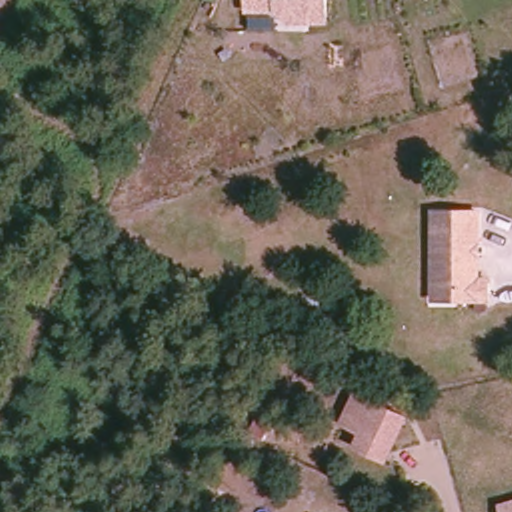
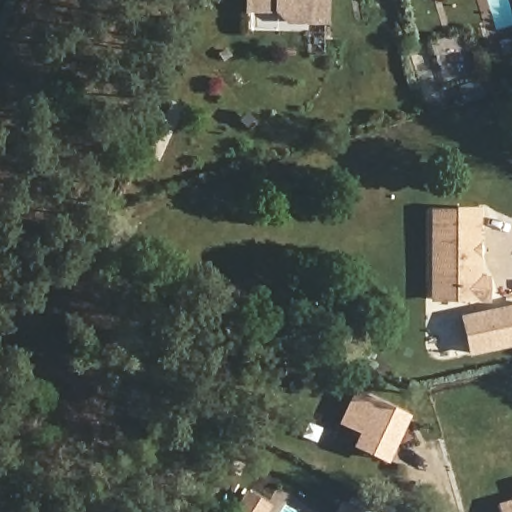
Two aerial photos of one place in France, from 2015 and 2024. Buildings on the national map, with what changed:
unchanged [(288,24),(279,15),(248,14),(247,0),(328,0),(327,25),(288,24)]
unchanged [(434,279),(436,210),(477,212),(475,280),(486,281),(486,303),(454,302),(433,301),(434,279)]
new [(512,340),(467,353),(457,319),(512,303),(512,340)]
unchanged [(354,448),(360,436),(339,424),(355,394),(404,419),(387,456),(383,463),(354,448)]
unchanged [(493,508),(512,502),(512,512),(494,512),(493,508)]

